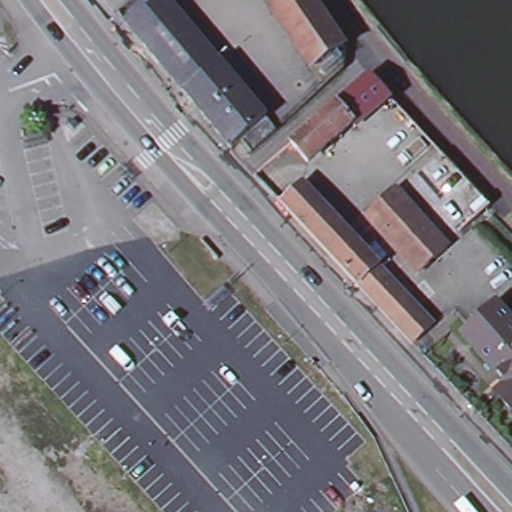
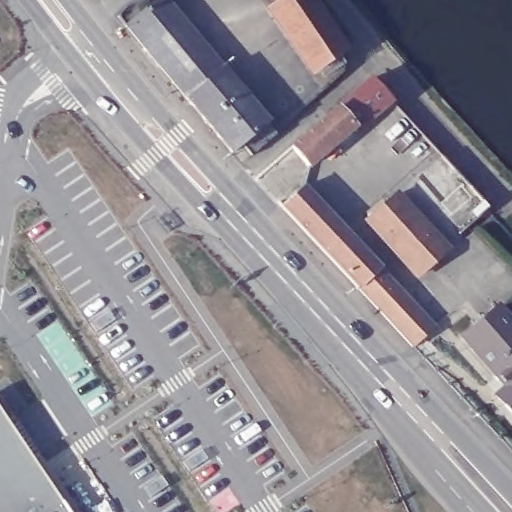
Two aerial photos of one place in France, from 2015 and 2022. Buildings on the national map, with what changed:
unchanged [(187,95),(128,23),(156,0),(169,0),(223,65),(187,95)]
unchanged [(261,0),(279,0),(267,9),(261,0)]
unchanged [(309,76),(264,10),(267,9),(279,0),(310,0),(344,50),(309,76)]
unchanged [(253,154),(243,141),(233,149),(187,95),(223,65),(269,120),(279,131),(253,154)]
unchanged [(389,109),(356,135),(351,130),(334,111),(366,83),(389,109)]
unchanged [(351,130),(306,169),(289,150),(334,111),(351,130)]
unchanged [(380,303),(281,202),(305,179),(404,283),(396,290),(423,319),(408,333),(380,303)]
unchanged [(446,247),(416,273),(369,219),(398,195),(446,247)]
unchanged [(512,328),(512,415),(495,396),(504,388),(460,338),(495,308),(512,328)]
new [(0,413),(66,512),(0,512),(0,413)]

